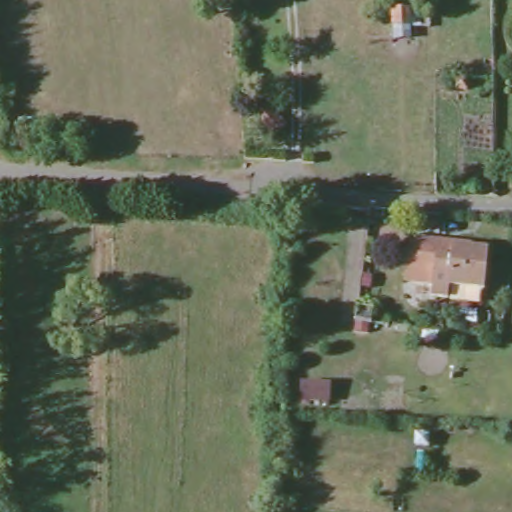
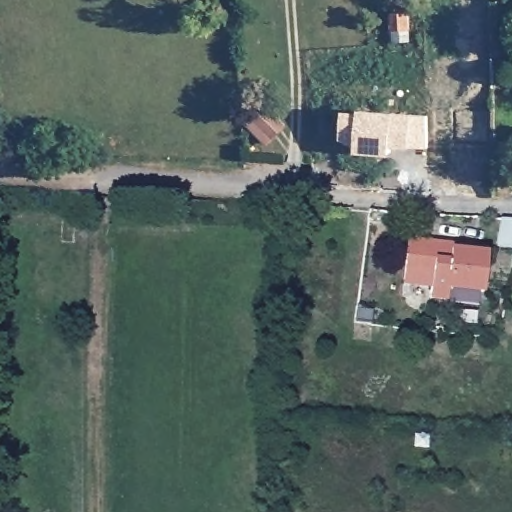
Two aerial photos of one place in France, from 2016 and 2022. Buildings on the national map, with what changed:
unchanged [(410,16),(409,30),(393,29),(393,15),(410,16)]
unchanged [(267,105),(291,126),(276,143),(253,120),(267,105)]
new [(339,115),(356,116),(356,113),(423,120),(424,150),(388,146),(386,155),(353,152),(354,132),(338,130),(339,115)]
unchanged [(452,242),(468,244),(468,249),(488,250),(484,290),(451,286),(449,297),(432,296),(433,283),(404,280),(409,237),(437,240),(452,242)]

